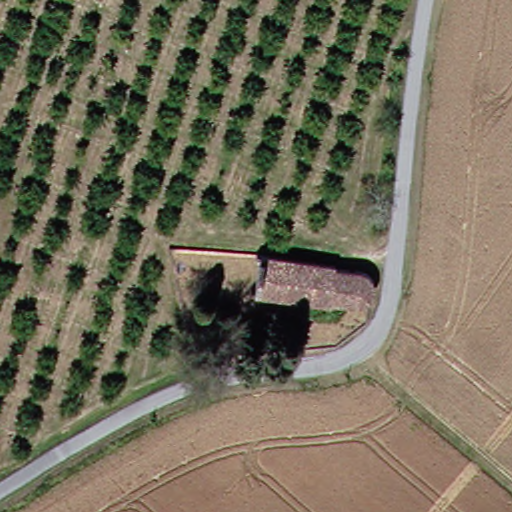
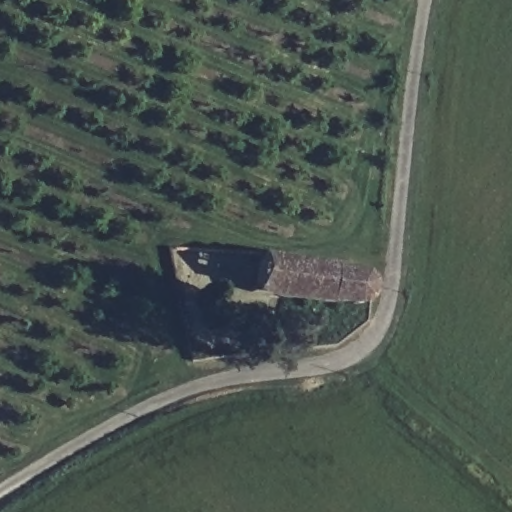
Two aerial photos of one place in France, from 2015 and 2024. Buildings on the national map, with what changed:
unchanged [(387,261),(395,285),(389,302),(366,302),(262,304),(260,253),(341,259),(387,261)]

